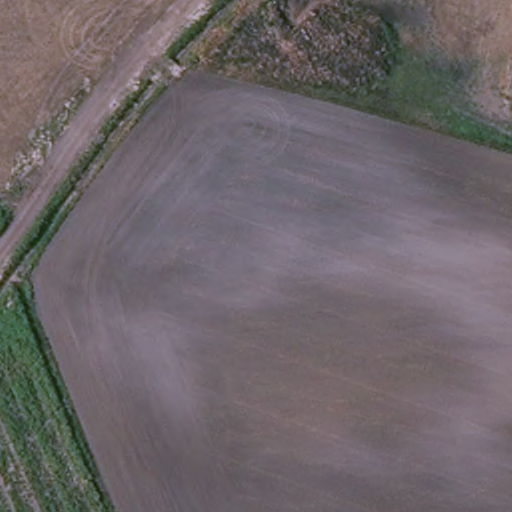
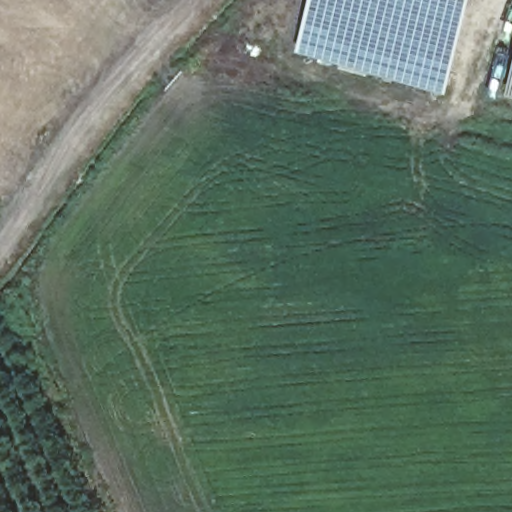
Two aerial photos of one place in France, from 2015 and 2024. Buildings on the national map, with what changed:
new [(298,51),(313,0),(475,0),(447,94),(298,51)]
unchanged [(509,97),(512,84),(512,98),(509,97)]

